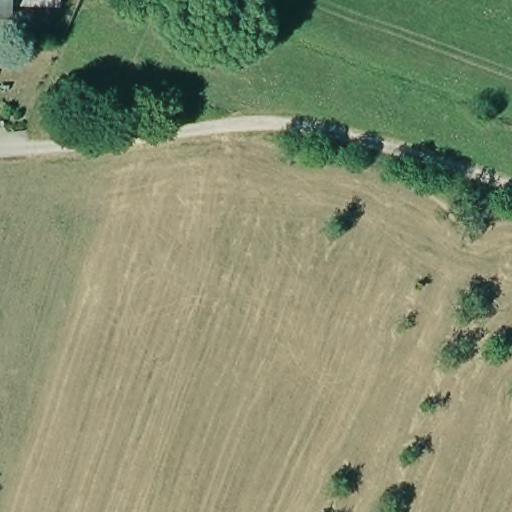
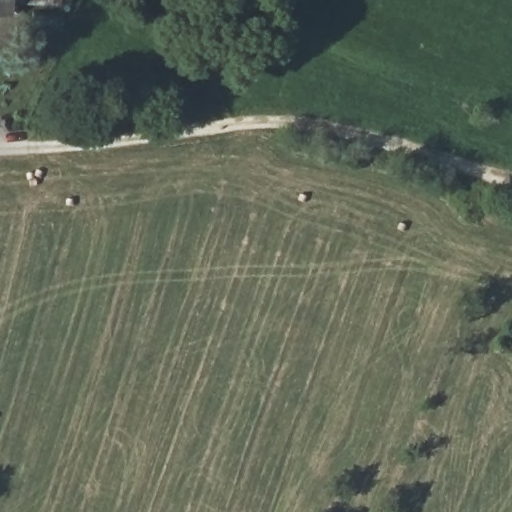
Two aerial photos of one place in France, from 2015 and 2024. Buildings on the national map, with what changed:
unchanged [(0,0),(15,0),(14,7),(14,17),(0,18),(0,0)]
unchanged [(53,7),(14,7),(15,0),(53,0),(53,7)]

